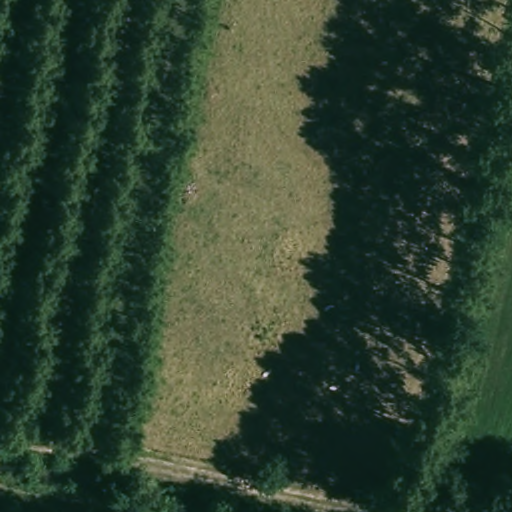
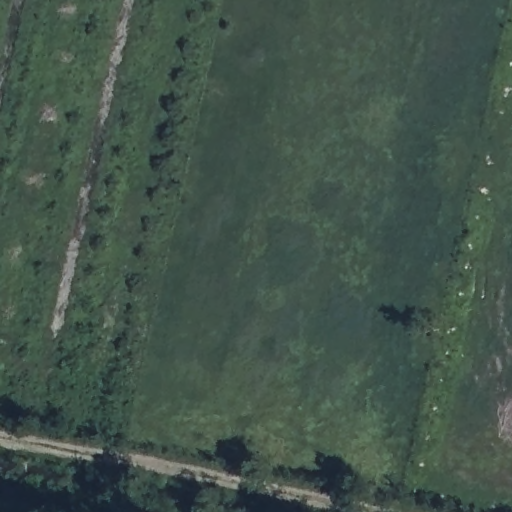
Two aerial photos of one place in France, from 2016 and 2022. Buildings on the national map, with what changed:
unchanged [(505,80),(512,81),(512,102),(501,100),(505,80)]

